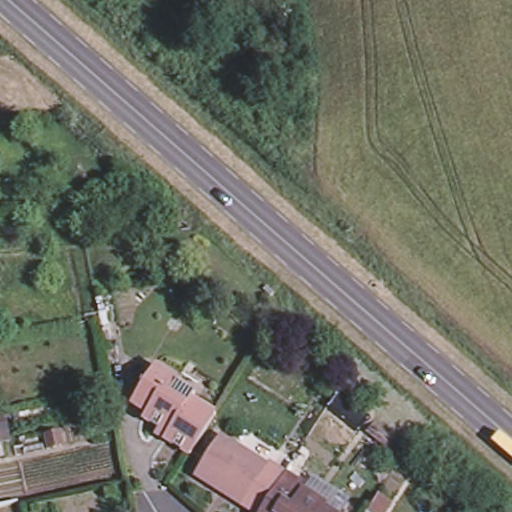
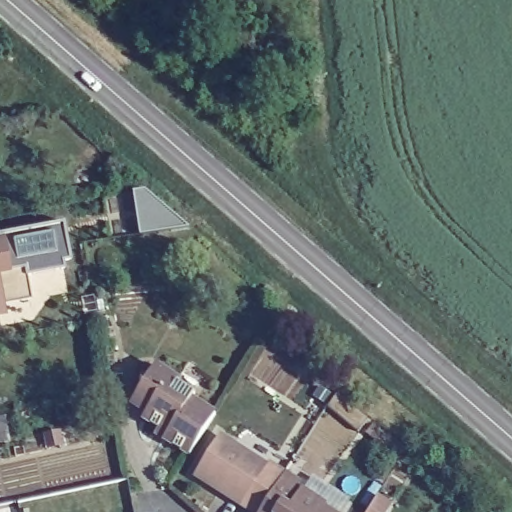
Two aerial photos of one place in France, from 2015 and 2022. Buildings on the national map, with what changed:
new [(189,226),(141,233),(135,191),(145,189),(189,226)]
new [(60,258),(62,268),(25,273),(30,298),(1,302),(3,316),(0,317),(0,231),(62,220),(68,257),(60,258)]
unchanged [(152,430),(137,420),(141,414),(126,405),(149,368),(173,384),(172,386),(189,397),(186,402),(209,417),(183,458),(156,441),(148,436),(152,430)]
unchanged [(241,507),(195,476),(218,439),(266,469),(268,466),(284,476),(298,485),(293,492),(300,497),(302,494),(303,495),(311,481),(347,504),(342,512),(249,512),(241,507)]

